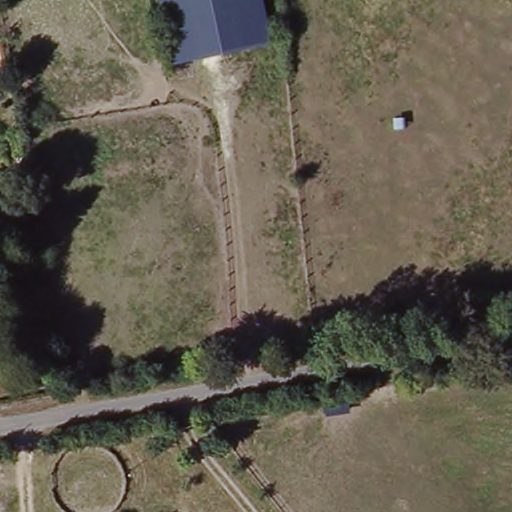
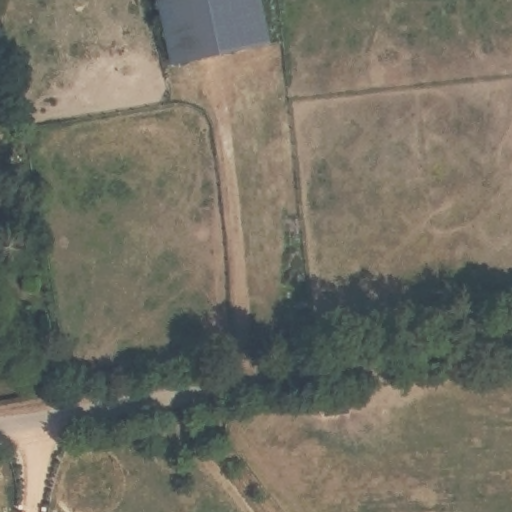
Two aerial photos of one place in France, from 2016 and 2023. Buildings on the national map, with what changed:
unchanged [(171,69),(156,0),(263,0),(274,48),(171,69)]

